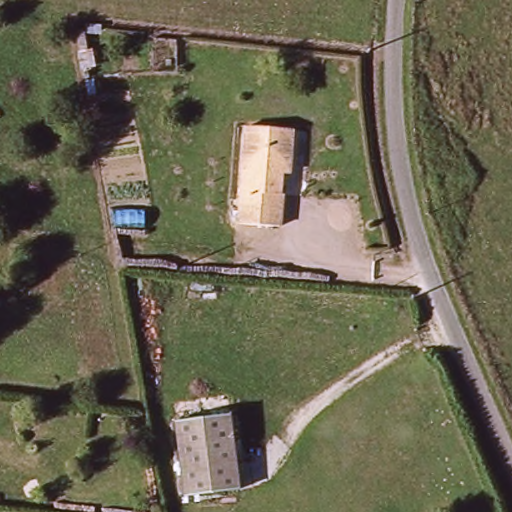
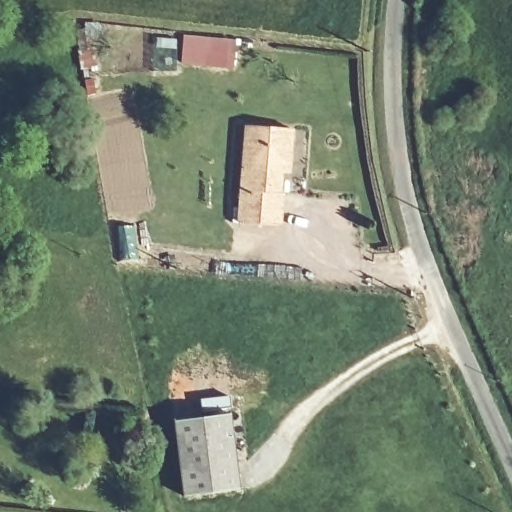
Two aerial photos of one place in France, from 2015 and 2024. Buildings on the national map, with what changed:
new [(182,64),(184,35),(237,39),(234,68),(182,64)]
unchanged [(300,171),(291,170),(288,193),(295,194),(292,223),(248,219),(259,123),(305,127),(300,171)]
unchanged [(243,492),(188,499),(178,424),(234,416),(243,492)]

